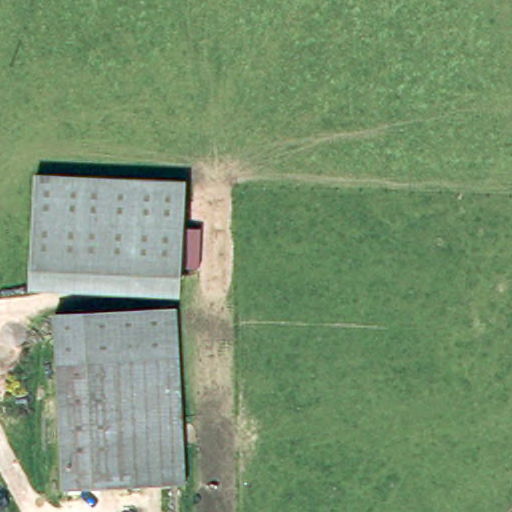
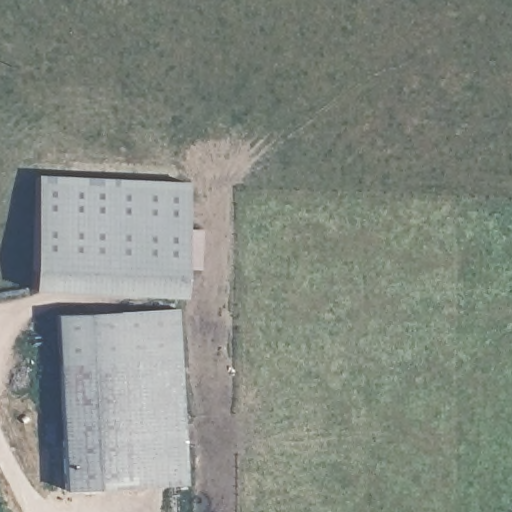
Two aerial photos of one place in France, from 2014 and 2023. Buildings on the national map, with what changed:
unchanged [(32,283),(39,175),(185,183),(176,293),(32,283)]
unchanged [(187,452),(67,461),(57,337),(177,327),(187,452)]

